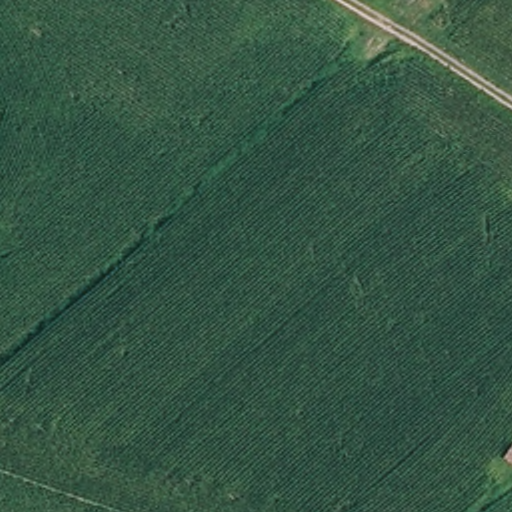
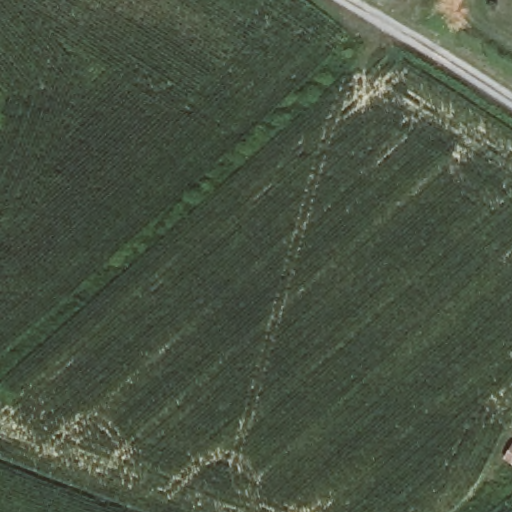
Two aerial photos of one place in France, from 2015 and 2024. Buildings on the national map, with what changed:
unchanged [(512,427),(512,443),(503,437),(512,427)]

